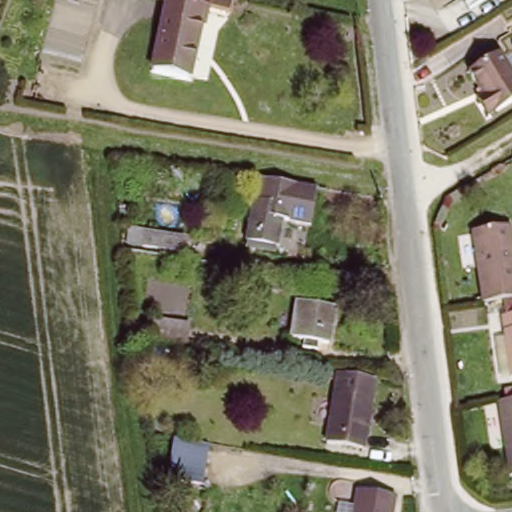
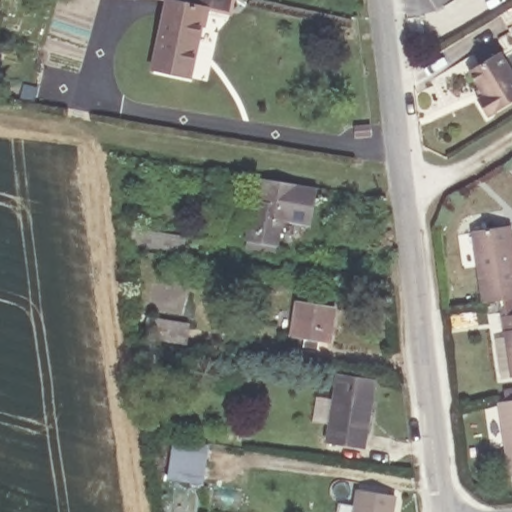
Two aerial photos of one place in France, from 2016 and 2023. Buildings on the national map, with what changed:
unchanged [(215,3),(210,25),(205,24),(195,74),(157,64),(173,0),(238,0),(236,8),(215,3)]
unchanged [(481,100),(487,96),(490,94),(476,69),(505,52),(512,63),(512,104),(496,113),(490,116),(481,100)]
unchanged [(247,249),(249,240),(255,200),(260,177),(266,178),(300,183),(294,219),(288,218),(283,245),(282,254),(247,249)]
unchanged [(478,230),(512,225),(512,298),(488,302),(478,230)]
unchanged [(131,229),(175,235),(172,249),(128,242),(131,229)]
unchanged [(342,300),(336,338),(325,337),(324,346),(310,344),(311,334),(299,332),(306,295),(342,300)]
unchanged [(506,313),(512,312),(512,352),(506,313)]
unchanged [(155,320),(193,325),(190,347),(151,340),(155,320)]
unchanged [(380,397),(367,467),(332,461),(342,392),(380,397)]
unchanged [(503,399),(512,398),(512,461),(503,399)]
unchanged [(206,448),(200,489),(166,483),(173,442),(206,448)]
unchanged [(394,512),(357,512),(362,479),(398,485),(394,512)]

